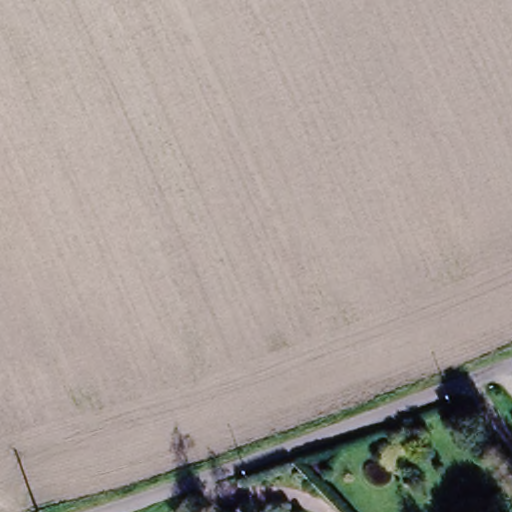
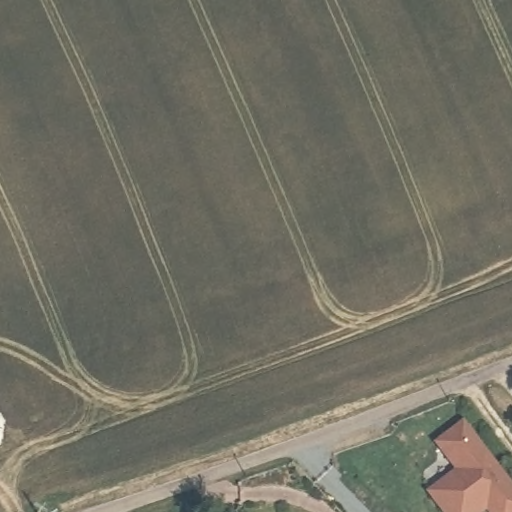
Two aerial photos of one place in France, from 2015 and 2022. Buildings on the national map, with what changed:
new [(436,444),(463,424),(512,488),(512,512),(488,512),(486,509),(482,512),(442,512),(428,494),(457,472),(436,444)]

